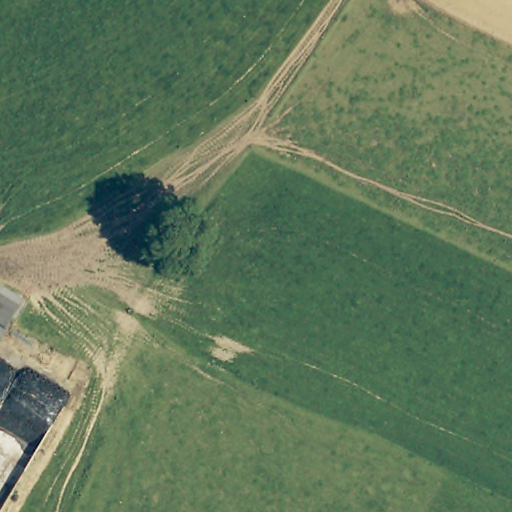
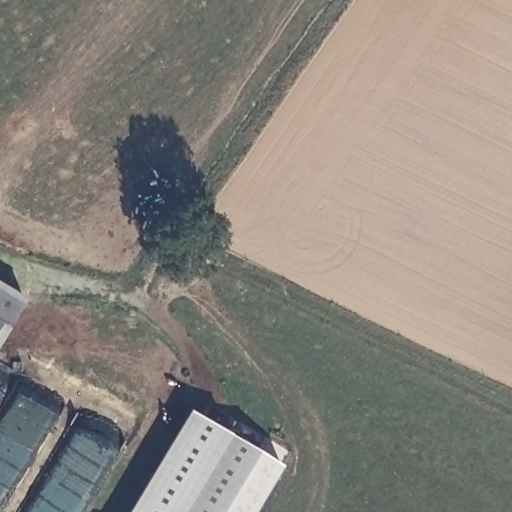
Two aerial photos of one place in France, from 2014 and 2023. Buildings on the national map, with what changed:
unchanged [(0,342),(0,285),(25,300),(0,342)]
new [(255,512),(130,512),(191,409),(283,466),(255,512)]

